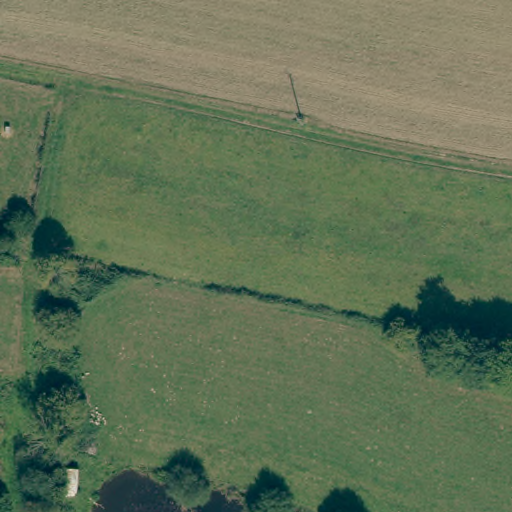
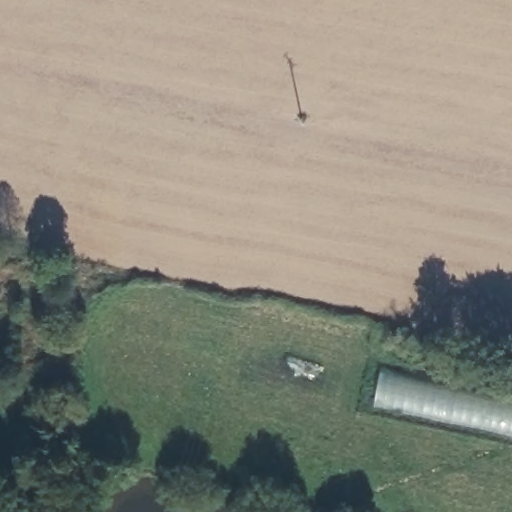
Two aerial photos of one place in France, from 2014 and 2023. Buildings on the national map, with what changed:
new [(371,407),(378,366),(512,394),(512,436),(371,407)]

